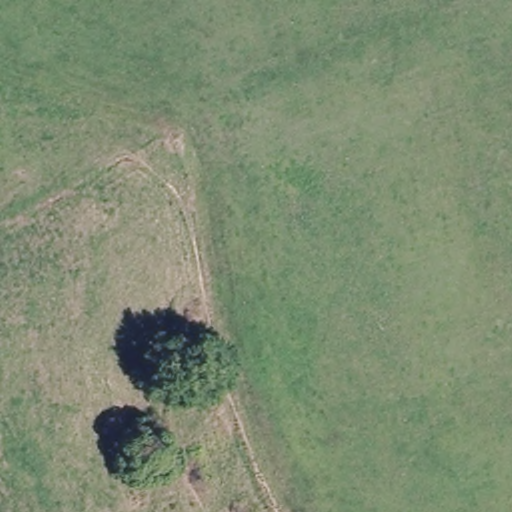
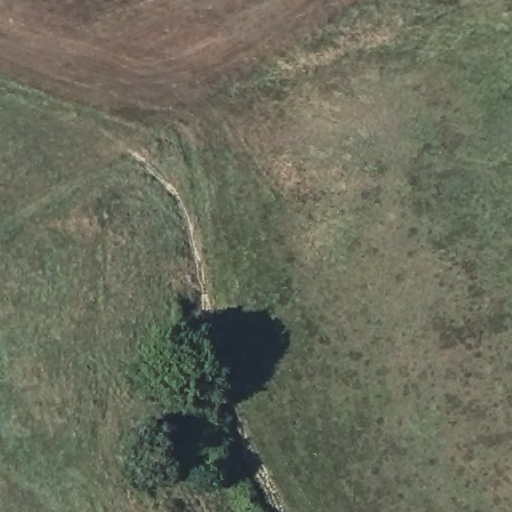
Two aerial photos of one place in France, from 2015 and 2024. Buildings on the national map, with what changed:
[]

